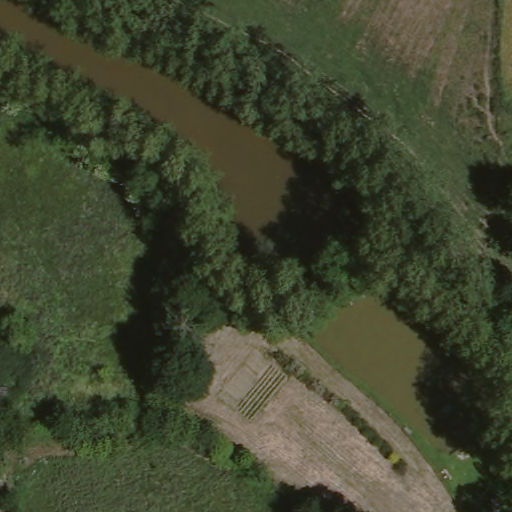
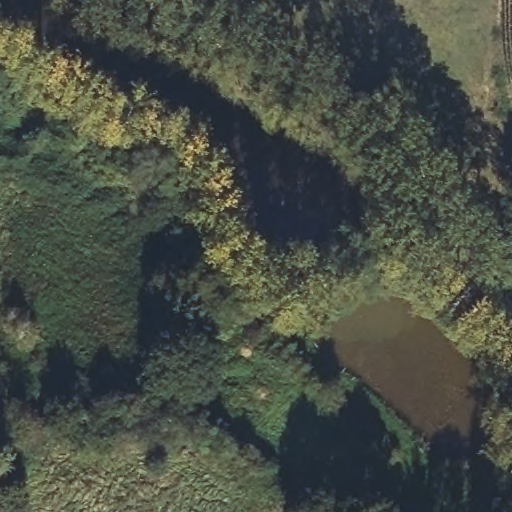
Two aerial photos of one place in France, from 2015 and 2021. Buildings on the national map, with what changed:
unchanged [(12,512),(0,512),(0,487),(12,487),(12,512)]

